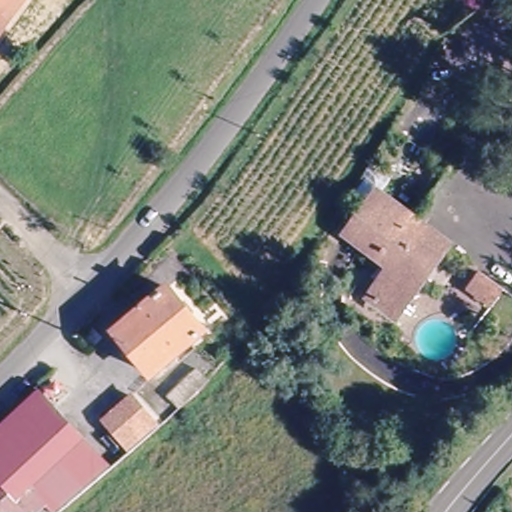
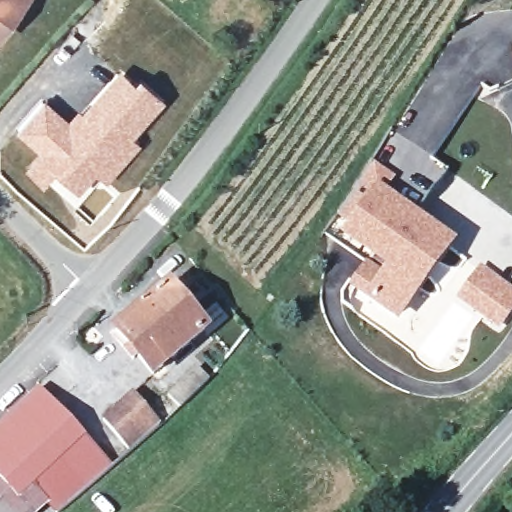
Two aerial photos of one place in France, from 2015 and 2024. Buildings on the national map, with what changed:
unchanged [(16,6),(8,17),(0,29),(0,0),(21,0),(16,6)]
new [(46,99),(68,118),(78,108),(81,110),(120,68),(134,80),(140,75),(166,98),(134,135),(141,142),(109,180),(96,171),(78,191),(55,172),(42,184),(26,169),(40,152),(17,132),(46,99)]
unchanged [(444,245),(392,315),(366,297),(388,267),(342,234),(346,230),(373,193),(444,245)]
unchanged [(480,272),(505,289),(494,306),(468,288),(480,272)]
unchanged [(168,288),(205,331),(153,375),(116,331),(168,288)]
unchanged [(209,381),(180,408),(168,396),(197,368),(209,381)]
unchanged [(35,389),(80,438),(108,467),(55,512),(50,512),(41,501),(30,512),(0,512),(0,422),(35,389)]
unchanged [(159,428),(130,453),(103,421),(132,396),(159,428)]

